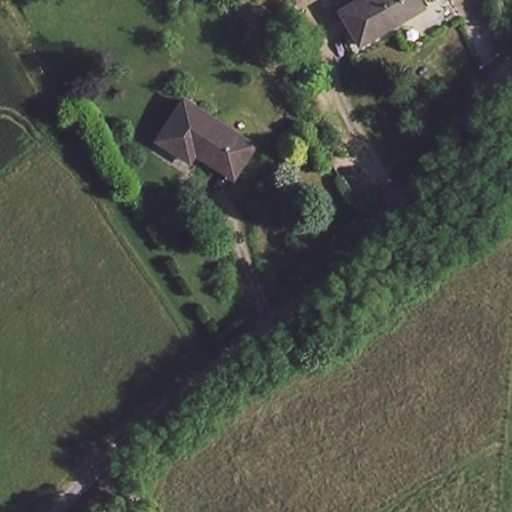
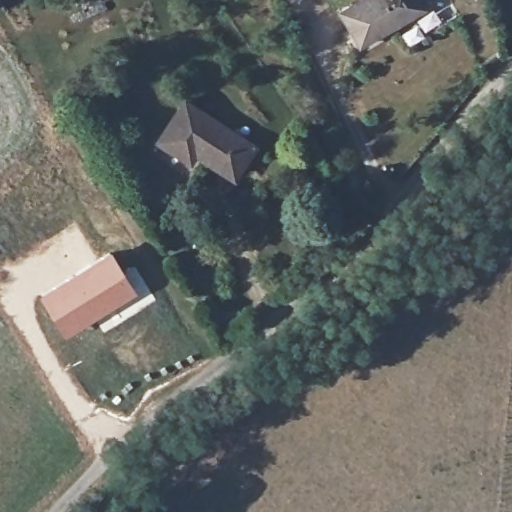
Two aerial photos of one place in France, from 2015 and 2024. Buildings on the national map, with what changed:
unchanged [(424,7),(363,42),(341,8),(353,0),(420,0),(424,7)]
unchanged [(237,176),(197,151),(189,162),(159,144),(185,106),(255,152),(237,176)]
new [(102,332),(92,317),(62,335),(38,294),(111,249),(137,288),(144,299),(102,332)]

